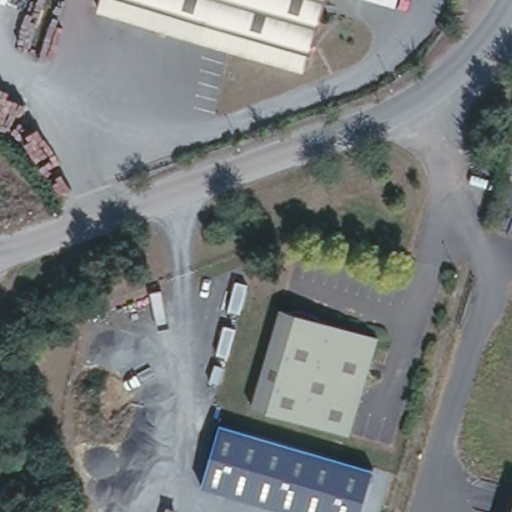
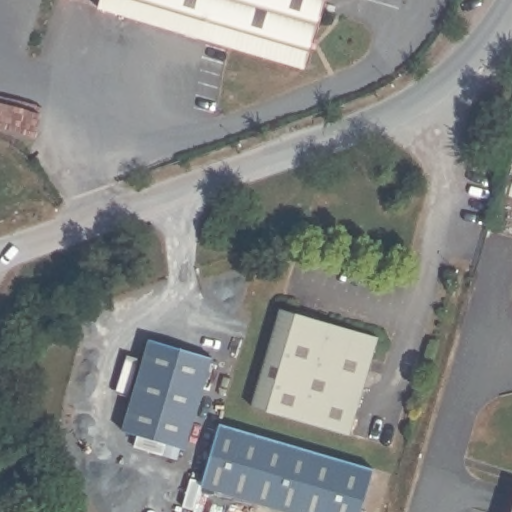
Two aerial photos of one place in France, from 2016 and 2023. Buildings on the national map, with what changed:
unchanged [(311,67),(99,11),(102,0),(329,0),(311,67)]
unchanged [(247,400),(275,298),(360,322),(330,422),(247,400)]
unchanged [(376,326),(347,427),(330,422),(360,322),(376,326)]
new [(182,442),(167,437),(161,457),(130,450),(133,436),(120,432),(147,337),(207,355),(182,442)]
unchanged [(374,468),(360,512),(283,512),(199,488),(220,422),(374,468)]
unchanged [(512,512),(508,512),(512,498),(512,512)]

